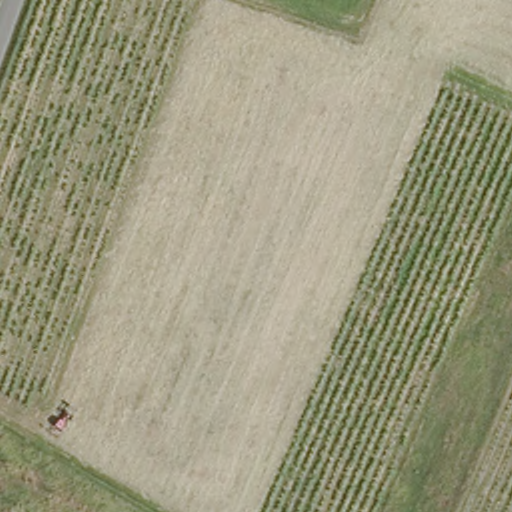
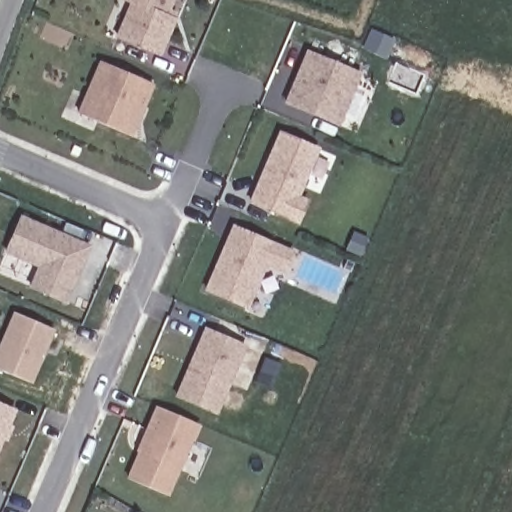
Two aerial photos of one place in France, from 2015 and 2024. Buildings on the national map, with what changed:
new [(171,0),(163,18),(171,22),(156,56),(115,38),(130,5),(121,1),(122,0),(171,0)]
new [(337,124),(286,101),(308,51),(360,74),(337,124)]
new [(129,136),(65,108),(72,90),(86,96),(100,62),(151,84),(129,136)]
new [(295,196),(305,200),(295,221),(249,200),(280,131),(316,148),(295,196)]
new [(64,300),(30,284),(39,264),(6,249),(21,215),(89,245),(64,300)]
new [(284,273),(265,265),(247,311),(201,291),(230,225),(293,253),(284,273)]
new [(0,370),(0,346),(15,313),(52,330),(29,383),(0,370)]
new [(214,411),(175,393),(205,327),(244,345),(214,411)]
new [(0,405),(15,411),(0,441),(0,405)]
new [(166,496),(127,479),(159,407),(197,424),(166,496)]

